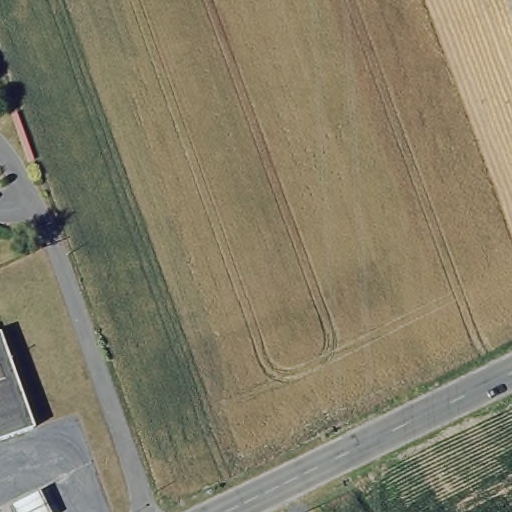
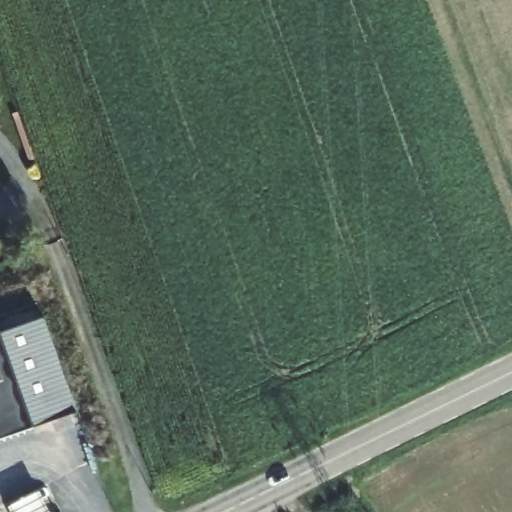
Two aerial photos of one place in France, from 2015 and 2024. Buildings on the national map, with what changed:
new [(76,414),(31,432),(23,409),(0,344),(0,335),(43,319),(76,414)]
unchanged [(0,443),(0,345),(31,432),(0,443)]
unchanged [(47,512),(4,512),(3,508),(37,491),(47,512)]

